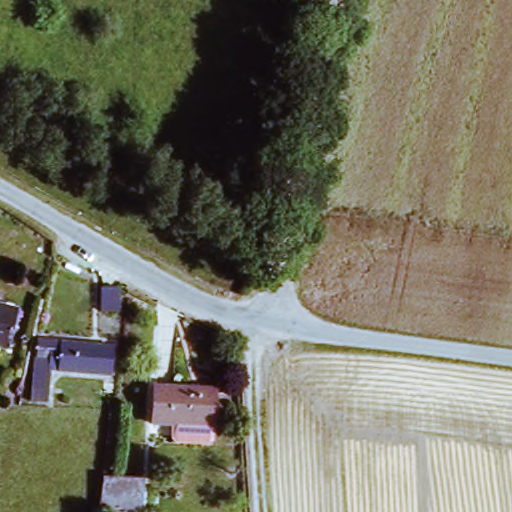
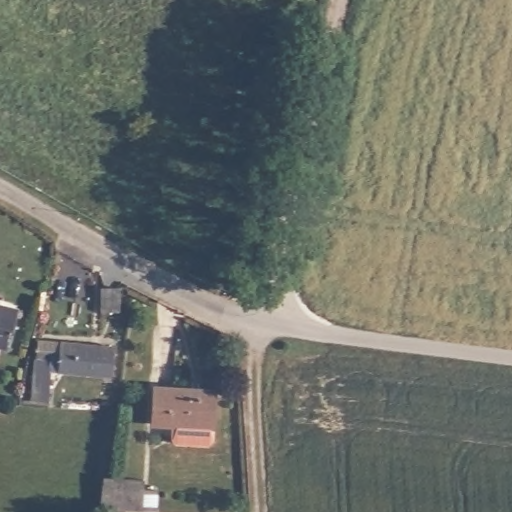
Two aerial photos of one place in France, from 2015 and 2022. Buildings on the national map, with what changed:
unchanged [(116,290),(118,313),(100,312),(100,291),(116,290)]
unchanged [(10,346),(0,343),(0,308),(18,313),(10,346)]
unchanged [(26,398),(30,379),(35,336),(50,339),(101,344),(97,369),(50,364),(48,381),(46,402),(26,398)]
unchanged [(152,418),(152,407),(154,387),(209,388),(207,413),(205,424),(152,418)]
unchanged [(157,488),(157,510),(101,505),(105,477),(138,480),(137,486),(157,488)]

